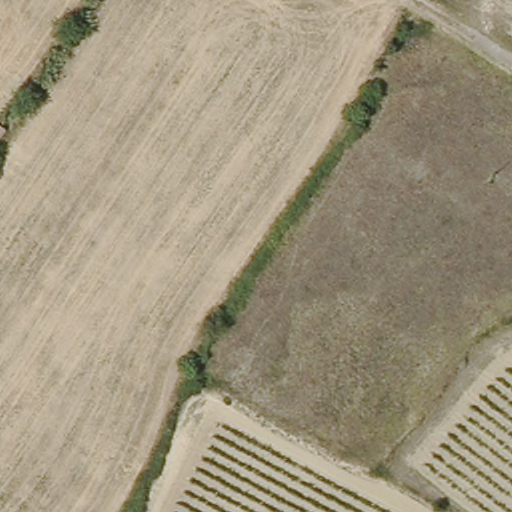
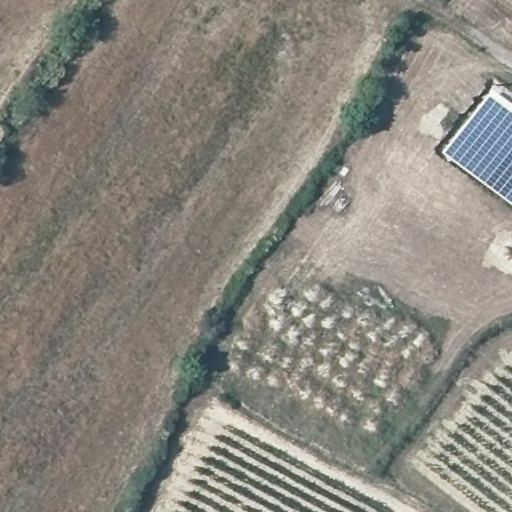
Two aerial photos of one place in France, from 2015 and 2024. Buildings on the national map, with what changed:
new [(487,86),(512,104),(512,204),(442,152),(487,86)]
unchanged [(0,144),(0,117),(13,123),(0,144)]

